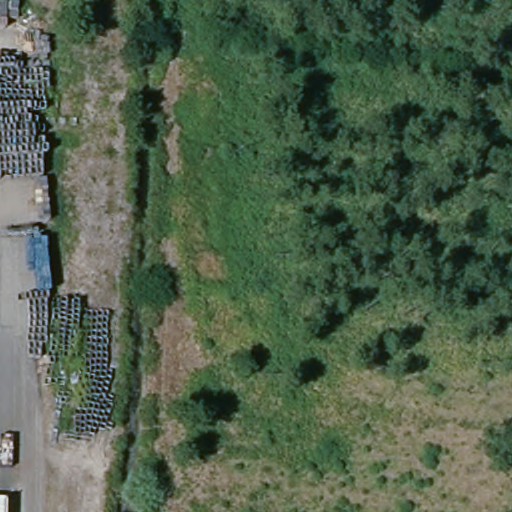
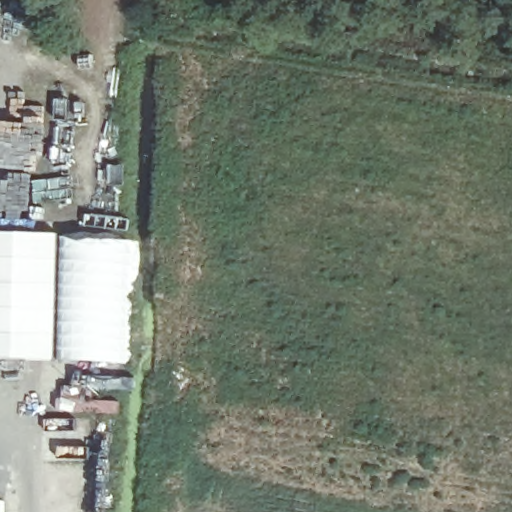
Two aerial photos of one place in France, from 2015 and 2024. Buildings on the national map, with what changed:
new [(56,360),(0,359),(0,233),(60,234),(56,360)]
new [(66,240),(135,241),(135,364),(64,361),(66,240)]
unchanged [(4,502),(4,512),(0,512),(0,502),(4,502)]

